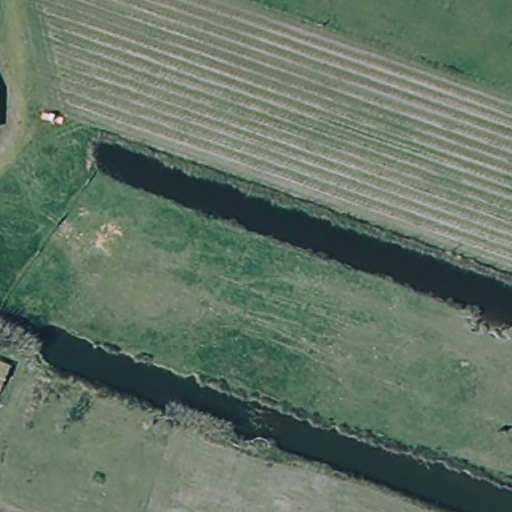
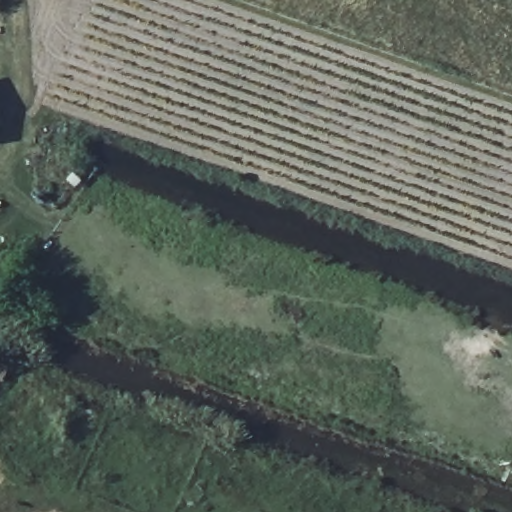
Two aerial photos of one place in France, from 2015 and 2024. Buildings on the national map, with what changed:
unchanged [(26,375),(18,391),(0,384),(0,366),(26,375)]

